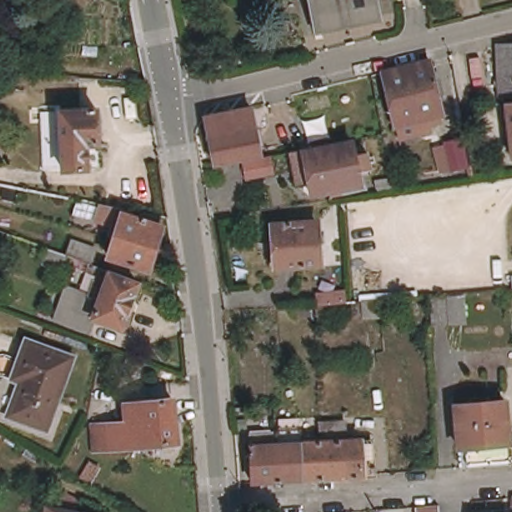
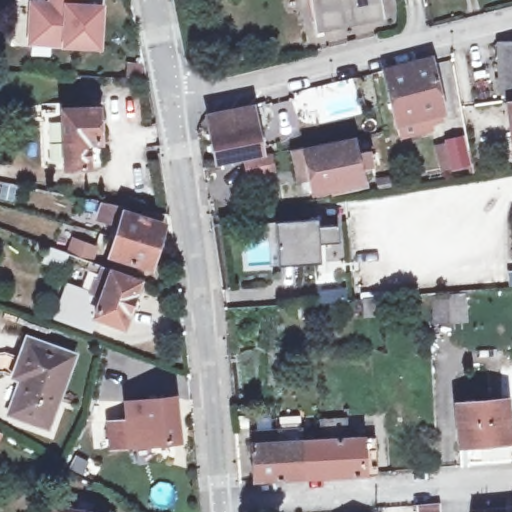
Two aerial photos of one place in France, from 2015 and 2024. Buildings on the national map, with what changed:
new [(98,8),(95,45),(45,42),(46,32),(30,31),(32,4),(50,5),(51,0),(82,0),(81,7),(98,8)]
unchanged [(310,0),(368,0),(372,22),(343,29),(318,35),(316,26),(310,0)]
unchanged [(505,50),(505,49),(505,47),(510,48),(512,48),(512,94),(506,94),(505,50)]
unchanged [(399,122),(385,69),(433,57),(444,110),(399,122)]
unchanged [(58,162),(58,105),(93,105),(93,137),(83,137),(83,163),(58,162)]
unchanged [(512,105),(512,113),(511,105),(512,105)]
unchanged [(220,162),(211,122),(254,112),(264,153),(220,162)]
unchanged [(310,190),(300,150),(351,140),(354,152),(368,150),(371,164),(358,167),(360,179),(310,190)]
unchanged [(457,170),(452,145),(468,140),(474,165),(457,170)]
unchanged [(89,220),(90,209),(118,214),(117,219),(109,218),(108,229),(95,226),(96,221),(89,220)]
unchanged [(141,223),(143,219),(161,222),(161,229),(163,229),(153,273),(113,262),(118,246),(124,219),(141,223)]
unchanged [(281,271),(276,229),(316,224),(321,265),(281,271)]
unchanged [(68,263),(62,261),(66,245),(73,247),(68,263)]
unchanged [(98,278),(100,268),(109,272),(108,276),(143,290),(129,332),(93,320),(89,331),(54,320),(65,287),(97,299),(103,281),(98,278)]
unchanged [(443,322),(441,299),(458,297),(458,321),(443,322)]
unchanged [(77,358),(52,427),(17,413),(28,381),(19,378),(25,361),(32,342),(77,358)]
unchanged [(86,448),(83,423),(120,420),(120,403),(171,399),(176,443),(86,448)]
unchanged [(465,405),(512,402),(512,466),(469,469),(465,405)]
unchanged [(318,446),(316,428),(341,427),(343,445),(374,445),(378,478),(252,486),(249,451),(248,437),(274,435),(301,433),(301,448),(316,447),(318,446)]
unchanged [(0,442),(0,435),(3,436),(0,442)]
unchanged [(41,506),(69,512),(40,512),(41,506)]
unchanged [(423,510),(443,507),(443,512),(423,512),(423,510)]

